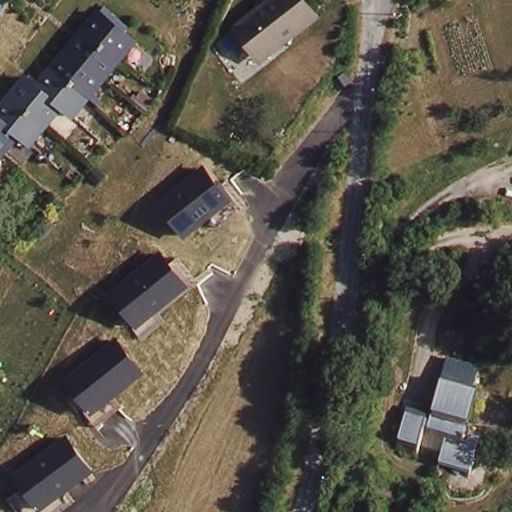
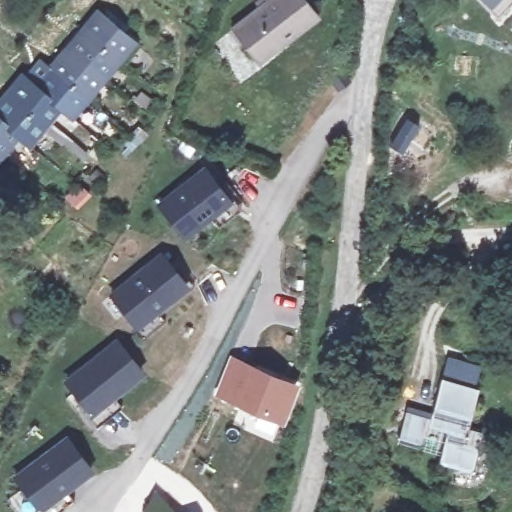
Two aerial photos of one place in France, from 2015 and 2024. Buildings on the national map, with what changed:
unchanged [(261,63),(237,34),(271,5),(267,0),(305,0),(317,14),(261,63)]
new [(502,5),(497,0),(489,9),(480,0),(507,0),(502,5)]
unchanged [(70,115),(60,108),(30,142),(18,132),(0,153),(0,102),(26,72),(37,81),(100,6),(139,37),(70,115)]
unchanged [(157,200),(205,166),(217,185),(222,182),(242,210),(219,229),(211,218),(185,240),(157,200)]
new [(82,190),(89,198),(77,209),(70,201),(82,190)]
unchanged [(137,331),(107,291),(161,252),(173,269),(178,265),(195,288),(160,315),(165,323),(144,342),(137,331)]
unchanged [(84,411),(86,409),(62,379),(117,337),(145,373),(115,397),(122,407),(97,427),(84,411)]
new [(230,356),(299,383),(283,425),(214,396),(230,356)]
unchanged [(444,356),(480,360),(477,379),(469,379),(464,422),(477,424),(471,476),(437,472),(442,435),(419,432),(417,444),(397,441),(400,413),(426,416),(431,374),(440,375),(444,356)]
unchanged [(74,503),(62,512),(23,512),(14,499),(25,493),(14,476),(68,435),(95,472),(67,493),(74,503)]
new [(142,512),(156,492),(175,512),(142,512)]

